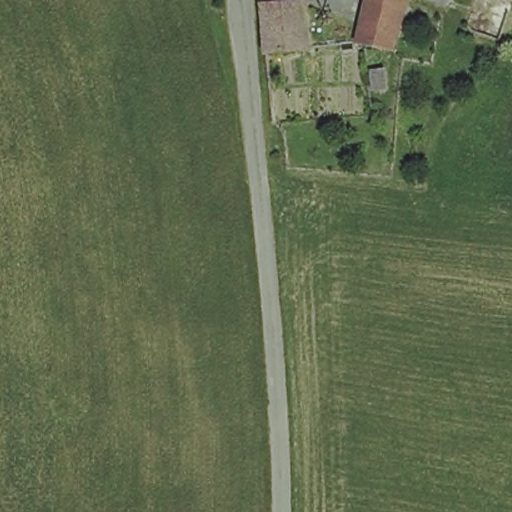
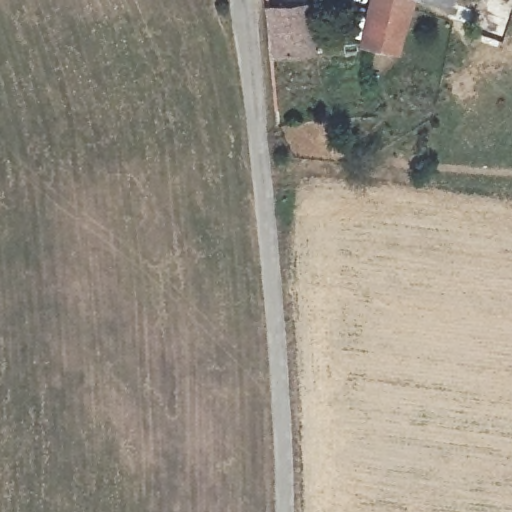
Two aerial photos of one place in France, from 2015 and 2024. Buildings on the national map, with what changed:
unchanged [(355,44),(368,0),(456,0),(450,19),(414,5),(402,40),(395,59),(372,50),(361,46),(355,44)]
unchanged [(275,56),(274,40),(271,7),(270,6),(308,5),(311,54),(275,56)]

